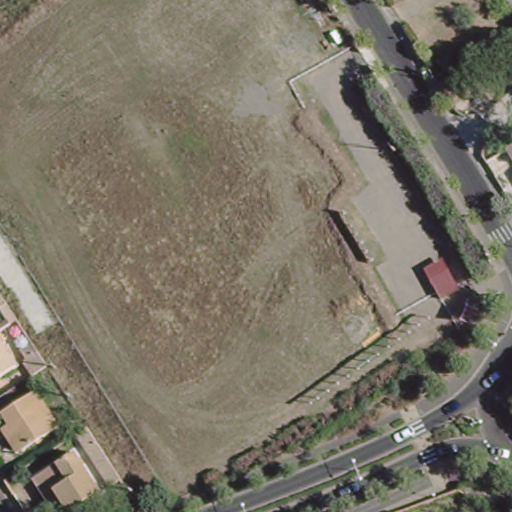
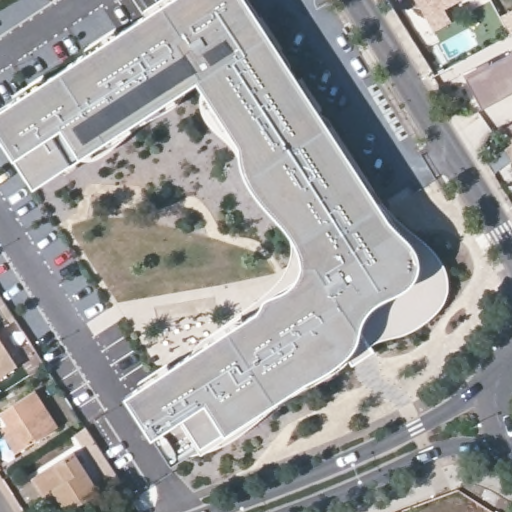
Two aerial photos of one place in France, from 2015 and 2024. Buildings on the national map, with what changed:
new [(247,0),(324,116),(394,226),(406,237),(419,251),(420,261),(417,276),(409,285),(386,297),(371,304),(363,316),(357,338),(351,352),(332,367),(230,433),(226,428),(202,444),(173,466),(153,440),(126,397),(262,310),(267,294),(287,289),(302,275),(303,260),(297,240),(273,211),(251,184),(242,161),(242,146),(200,80),(81,156),(36,187),(16,156),(0,133),(0,111),(172,0),(247,0)]
new [(453,24),(437,33),(418,0),(460,0),(445,9),(453,24)]
unchanged [(512,139),(512,155),(505,143),(512,139)]
new [(415,234),(430,246),(441,259),(447,272),(449,287),(438,313),(422,326),(406,334),(392,338),(377,342),(370,346),(375,352),(353,366),(346,356),(351,352),(357,338),(363,316),(371,304),(386,297),(409,285),(417,276),(420,261),(419,251),(406,237),(394,226),(385,211),(415,234)]
demolished [(0,279),(0,228),(50,314),(29,327),(0,279)]
unchanged [(16,366),(0,375),(0,342),(16,366)]
unchanged [(18,429),(7,411),(40,390),(64,426),(27,450),(22,453),(6,428),(11,425),(15,431),(18,429)]
unchanged [(46,495),(34,477),(75,451),(101,491),(67,512),(63,512),(56,501),(51,504),(46,495)]

